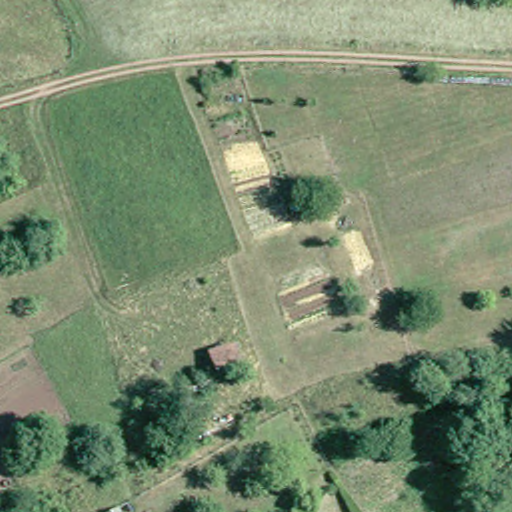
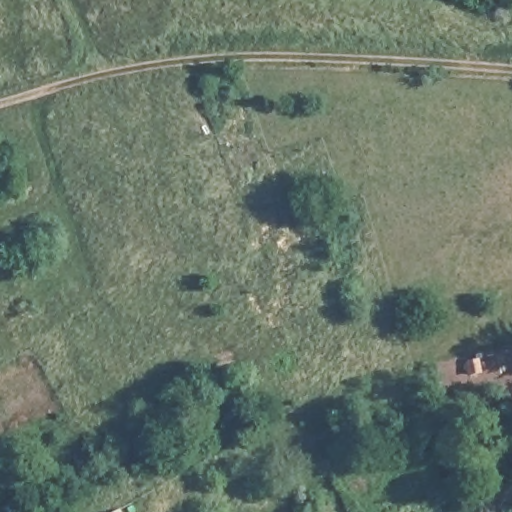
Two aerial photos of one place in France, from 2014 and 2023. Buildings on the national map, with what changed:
unchanged [(475,364),(477,375),(470,377),(467,366),(475,364)]

